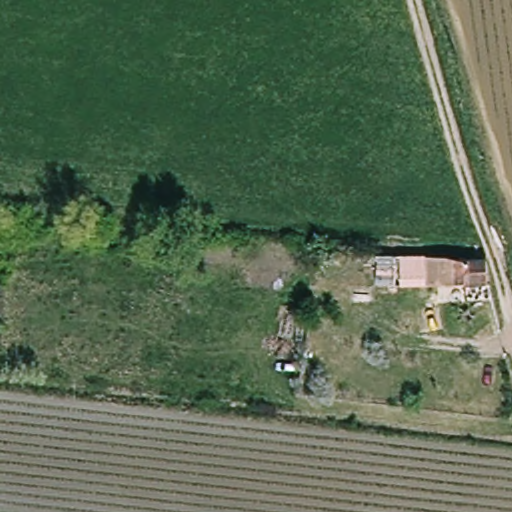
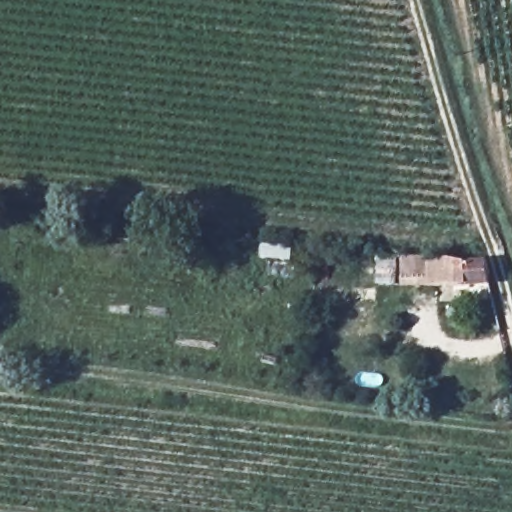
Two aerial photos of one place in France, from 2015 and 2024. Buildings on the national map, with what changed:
unchanged [(493,260),(492,291),(375,291),(365,290),(365,258),(493,260)]

